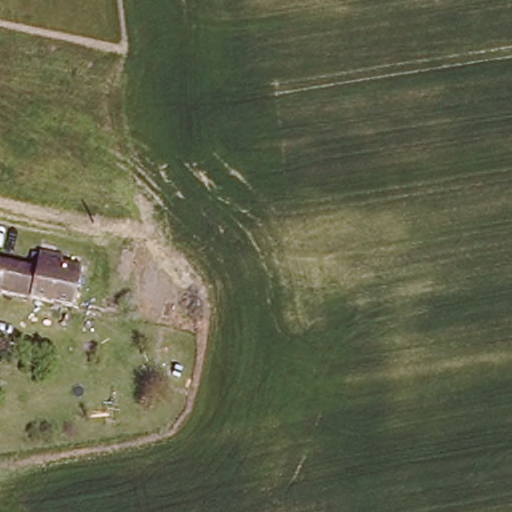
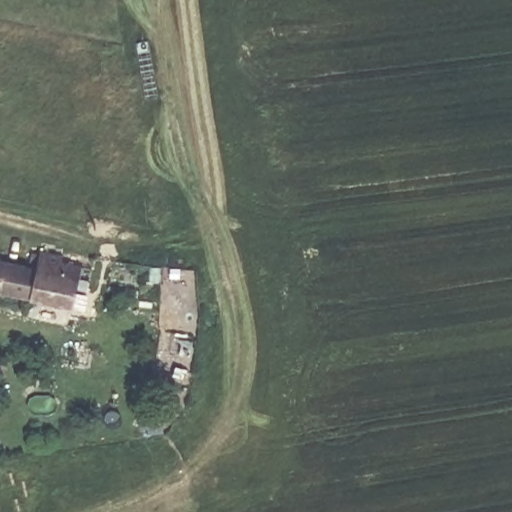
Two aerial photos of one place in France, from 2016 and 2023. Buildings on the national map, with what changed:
unchanged [(72,307),(0,291),(0,261),(38,269),(42,251),(66,257),(64,264),(81,268),(72,307)]

